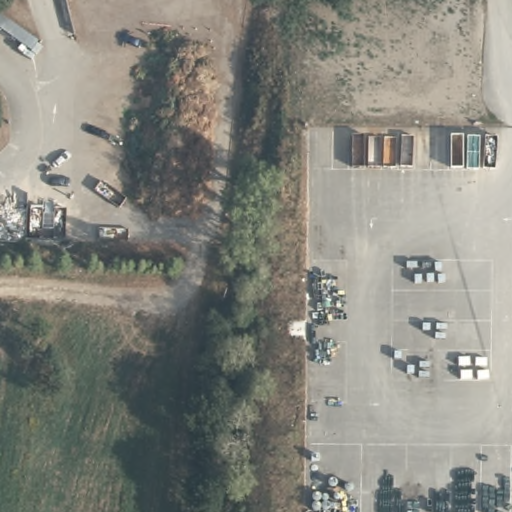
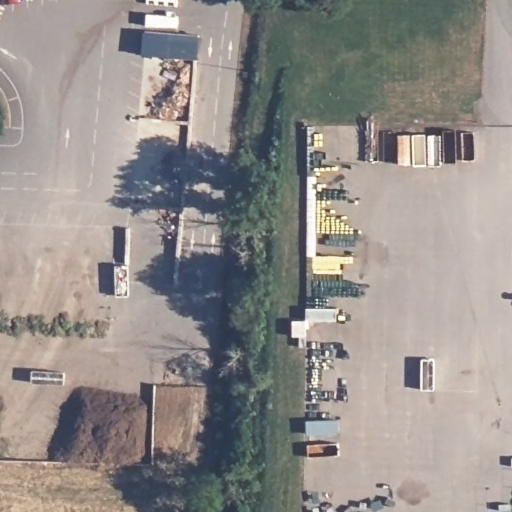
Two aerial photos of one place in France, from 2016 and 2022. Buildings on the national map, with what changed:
new [(142,55),(144,31),(199,36),(197,60),(142,55)]

